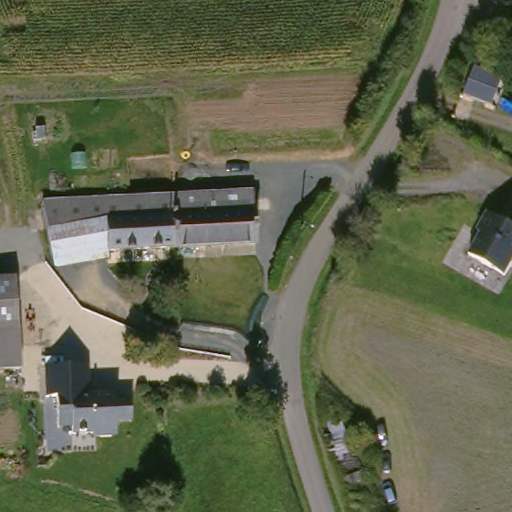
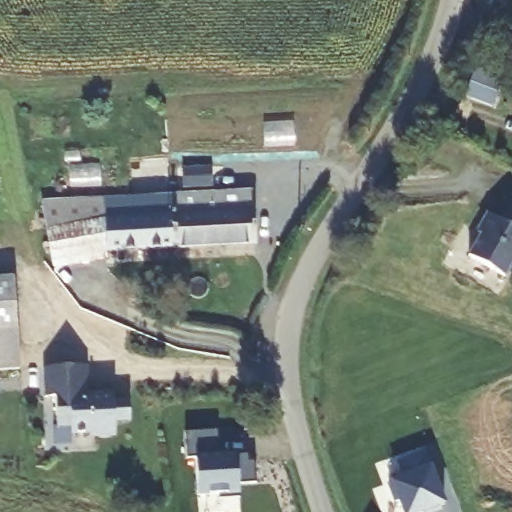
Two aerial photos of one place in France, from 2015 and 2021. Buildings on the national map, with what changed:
unchanged [(486,66),(512,81),(497,108),(471,93),(486,66)]
unchanged [(107,254),(106,221),(46,230),(43,203),(251,197),(254,250),(107,254)]
unchanged [(470,257),(483,235),(479,232),(489,214),(501,221),(507,220),(506,214),(512,203),(512,267),(506,277),(470,257)]
unchanged [(107,264),(52,271),(46,230),(106,221),(107,254),(107,264)]
unchanged [(12,279),(19,370),(0,371),(0,280),(12,279)]
unchanged [(85,363),(89,389),(111,387),(113,400),(128,399),(130,420),(114,422),(116,434),(58,437),(53,394),(44,394),(43,367),(85,363)]
new [(217,430),(218,456),(247,454),(247,462),(253,461),(253,483),(237,484),(238,498),(218,499),(217,494),(198,496),(195,458),(186,459),(185,432),(217,430)]
new [(398,501),(395,502),(388,485),(405,479),(399,461),(424,453),(444,504),(439,506),(440,510),(434,512),(403,512),(398,501)]

